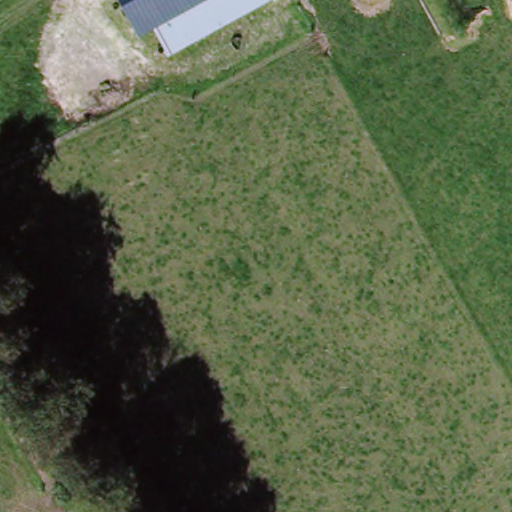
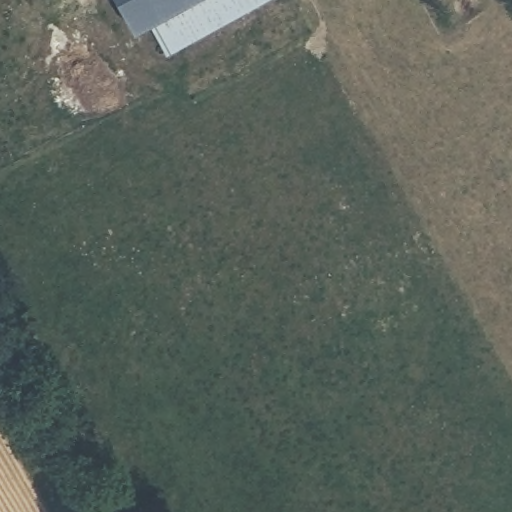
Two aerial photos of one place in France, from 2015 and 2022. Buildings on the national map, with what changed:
unchanged [(116,0),(182,0),(132,29),(116,0)]
unchanged [(152,24),(198,0),(268,0),(169,55),(152,24)]

